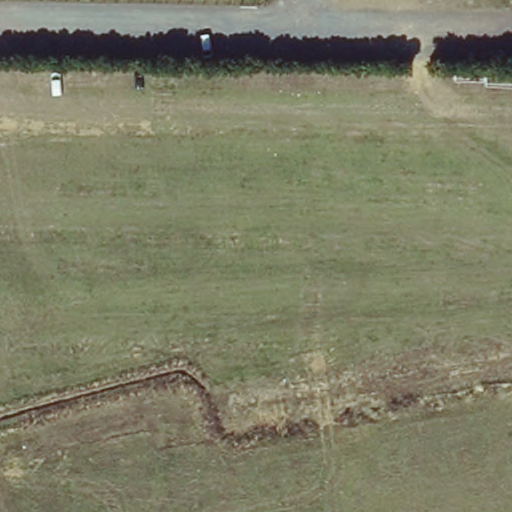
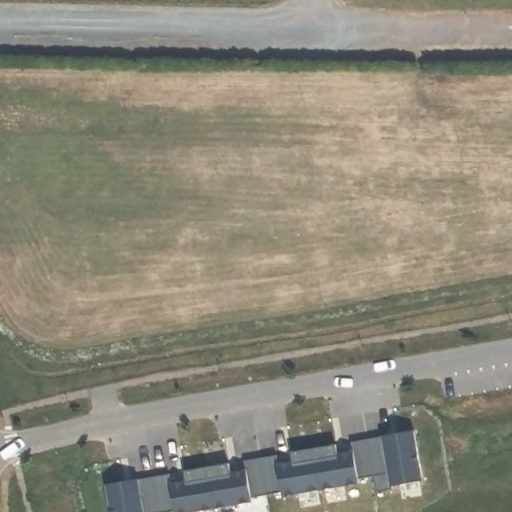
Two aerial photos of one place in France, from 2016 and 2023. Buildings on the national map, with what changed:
new [(172,482),(186,480),(185,470),(231,463),(231,471),(245,469),(243,459),(277,455),(278,463),(294,461),(293,451),(337,445),(339,453),(352,451),(351,440),(414,432),(423,483),(376,490),(374,475),(359,478),(360,483),(282,495),(282,493),(252,498),(252,502),(179,512),(112,512),(108,485),(171,474),(172,482)]

